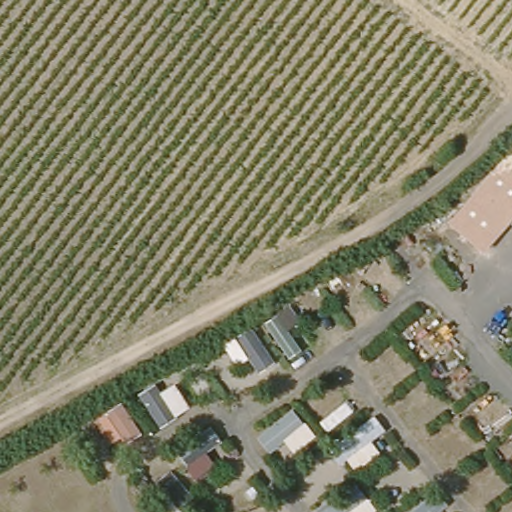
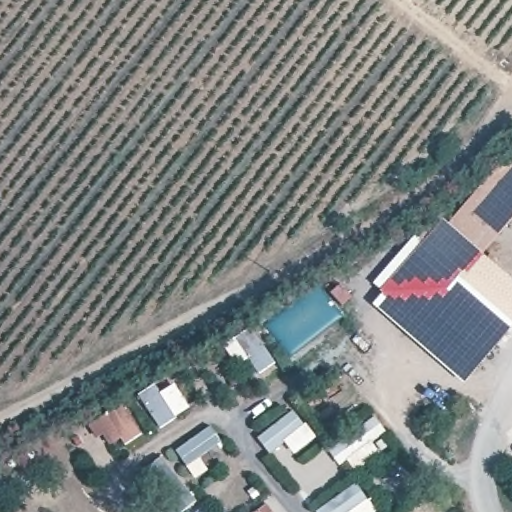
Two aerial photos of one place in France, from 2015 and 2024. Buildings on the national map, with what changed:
unchanged [(485,252),(449,225),(512,150),(512,221),(485,252)]
new [(485,252),(485,256),(465,280),(512,321),(512,329),(465,384),(373,304),(383,292),(374,283),(424,225),(432,232),(444,219),(449,225),(485,252)]

